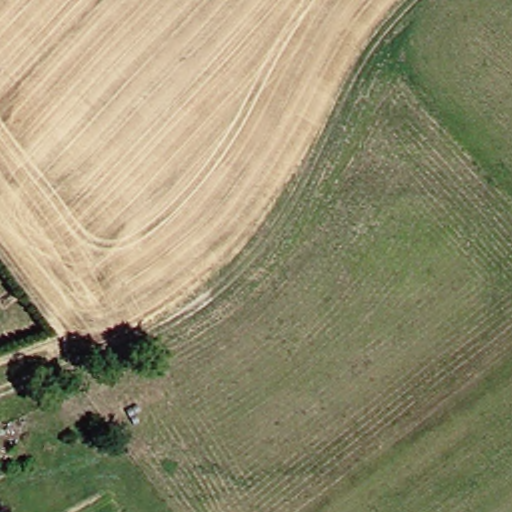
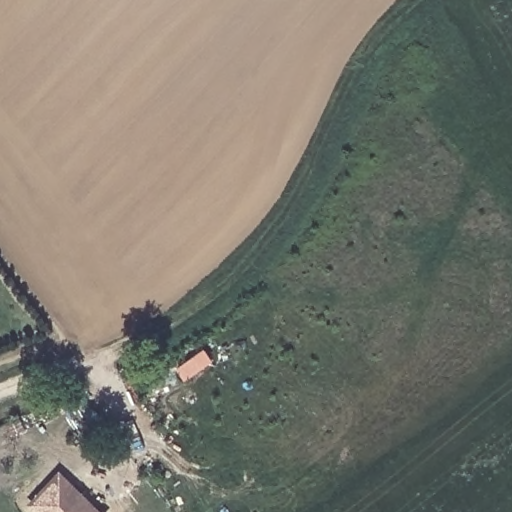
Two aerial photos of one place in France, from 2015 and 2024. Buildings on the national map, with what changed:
new [(28,506),(61,469),(105,512),(35,512),(28,506)]

